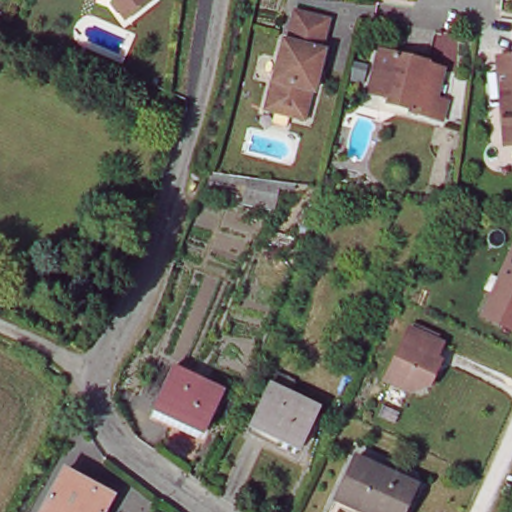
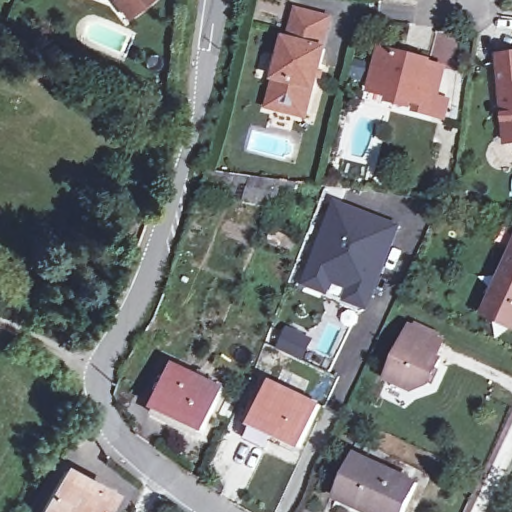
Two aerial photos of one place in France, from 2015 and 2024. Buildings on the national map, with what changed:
unchanged [(116,0),(146,0),(126,14),(116,0)]
unchanged [(302,115),(271,107),(288,39),(291,39),(300,9),(332,18),(325,46),(329,48),(320,88),(316,86),(308,116),(302,115)]
unchanged [(448,120),(435,117),(420,113),(421,104),(391,96),(374,91),(376,83),(386,49),(407,55),(432,62),(450,67),(441,97),(453,101),(448,120)]
unchanged [(498,51),(512,51),(512,141),(500,141),(498,51)]
unchanged [(250,174),(285,179),(285,187),(271,185),(267,205),(235,201),(239,173),(250,174)]
new [(348,299),(352,288),(354,284),(334,276),(332,280),(328,292),(305,283),(310,272),(337,205),(406,230),(375,298),(370,309),(348,299)]
unchanged [(487,314),(496,292),(503,277),(512,255),(512,325),(487,314)]
unchanged [(439,344),(433,358),(437,360),(426,384),(410,391),(385,381),(407,329),(439,344)]
unchanged [(176,371),(223,393),(204,434),(157,413),(176,371)]
unchanged [(274,386),(321,407),(303,447),(256,426),(274,386)]
unchanged [(350,460),(412,487),(401,512),(357,512),(332,502),(350,460)]
unchanged [(122,495),(112,512),(39,512),(68,461),(122,495)]

